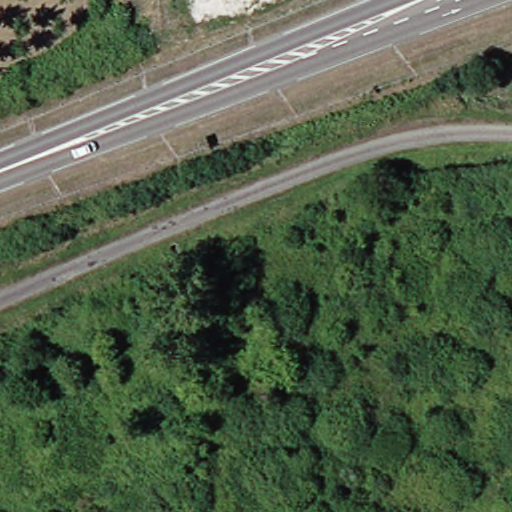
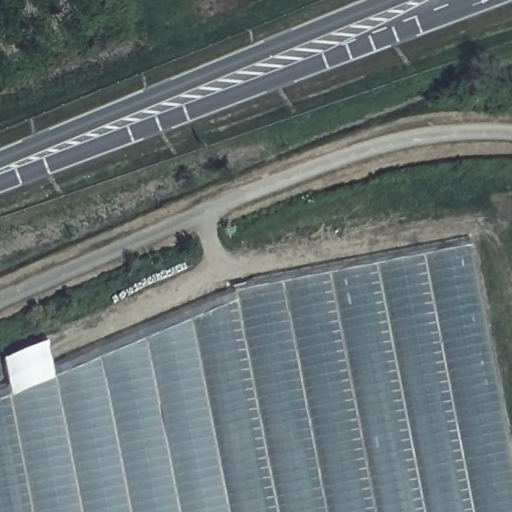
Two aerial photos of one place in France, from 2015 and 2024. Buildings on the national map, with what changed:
new [(238,301),(236,292),(467,245),(512,476),(512,512),(32,512),(10,396),(238,301)]
new [(0,512),(0,401),(10,396),(32,512),(0,512)]

